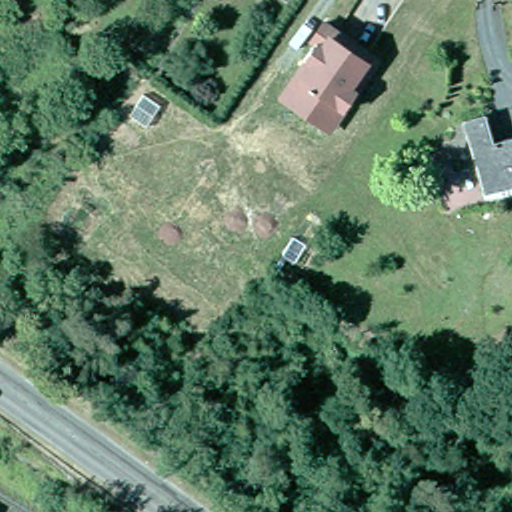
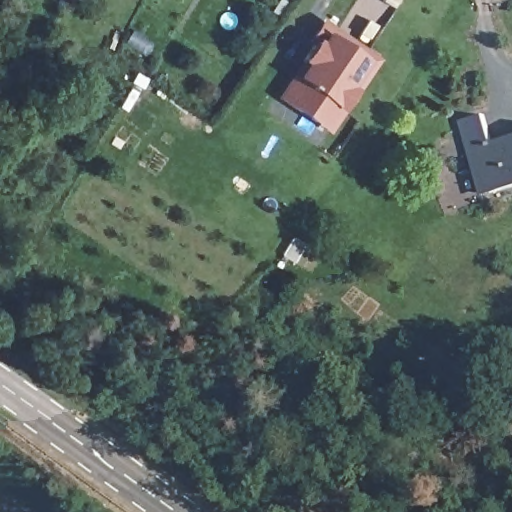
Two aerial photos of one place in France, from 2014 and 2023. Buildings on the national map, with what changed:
unchanged [(315,123),(279,99),(293,77),(298,79),(307,65),(302,61),(312,46),(308,43),(320,25),(375,61),(352,94),(342,111),(328,131),(315,123)]
unchanged [(475,186),(454,115),(477,108),(485,136),(512,128),(512,175),(475,186)]

